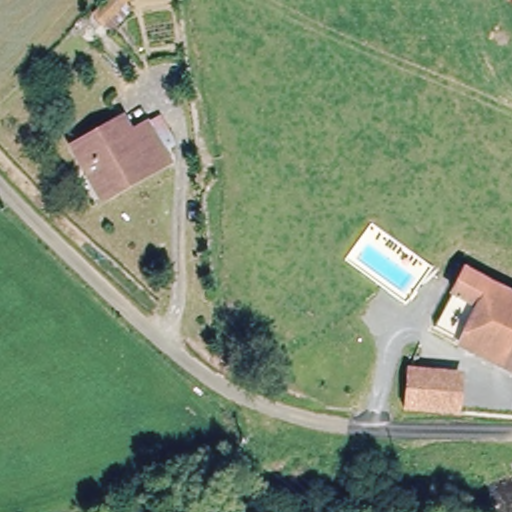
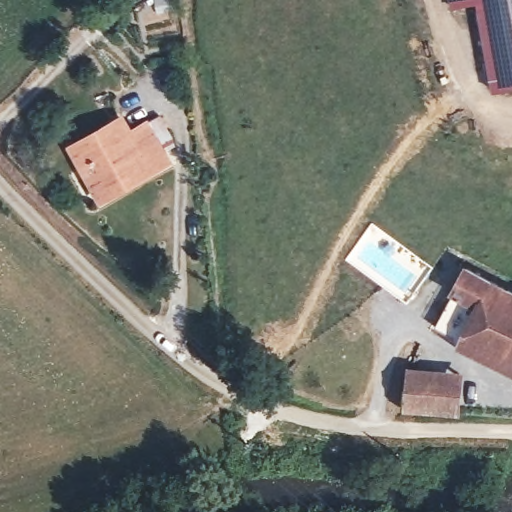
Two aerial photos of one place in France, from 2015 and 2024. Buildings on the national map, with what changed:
demolished [(104,19),(120,0),(125,0),(134,9),(116,30),(98,50),(75,27),(92,9),(104,19)]
new [(477,4),(451,10),(449,0),(512,0),(512,89),(493,92),(477,4)]
unchanged [(141,130),(158,122),(177,159),(109,193),(82,145),(133,117),(141,130)]
unchanged [(489,285),(457,350),(434,339),(462,274),(489,285)]
unchanged [(457,350),(489,285),(512,295),(512,374),(457,350)]
unchanged [(451,376),(449,414),(402,412),(404,374),(451,376)]

